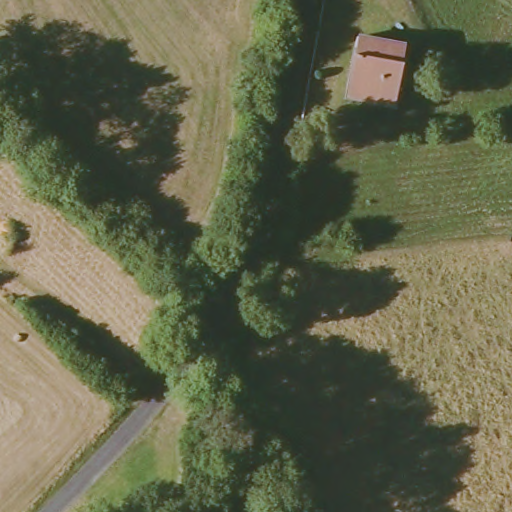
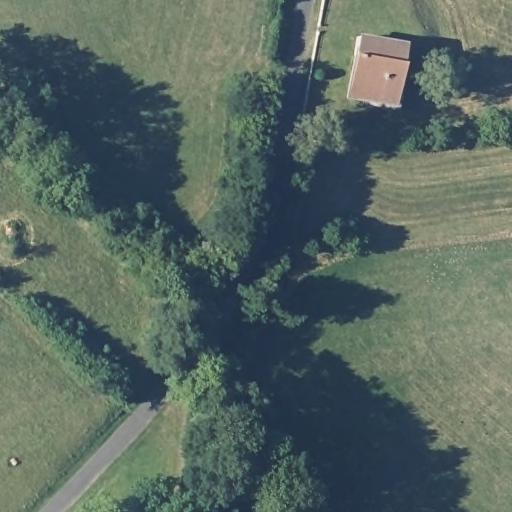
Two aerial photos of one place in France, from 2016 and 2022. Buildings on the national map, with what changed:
unchanged [(399,42),(390,101),(345,94),(355,35),(399,42)]

